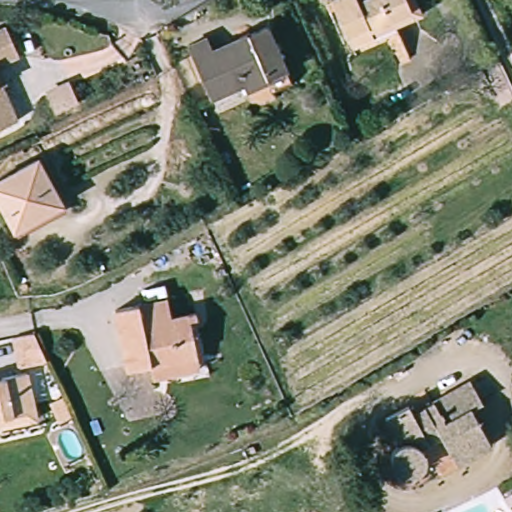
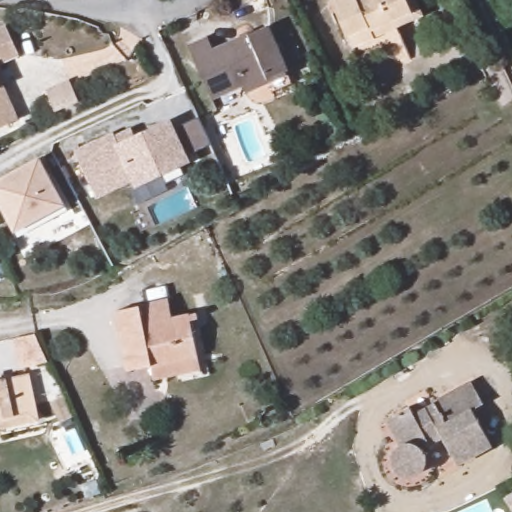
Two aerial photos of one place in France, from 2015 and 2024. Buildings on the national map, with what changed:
unchanged [(359,53),(339,7),(356,0),(362,0),(365,7),(381,0),(412,0),(423,25),(359,53)]
unchanged [(290,79),(249,96),(246,90),(216,104),(192,51),(210,44),(215,56),(269,32),(290,79)]
unchanged [(15,61),(0,68),(0,35),(3,34),(15,61)]
unchanged [(73,80),(84,103),(61,114),(50,91),(73,80)]
unchanged [(0,132),(0,94),(14,125),(0,132)]
new [(189,162),(133,185),(132,181),(96,199),(75,149),(110,134),(116,145),(167,120),(189,162)]
unchanged [(17,236),(0,203),(0,186),(41,165),(65,211),(17,236)]
unchanged [(152,386),(148,372),(125,377),(112,317),(165,306),(168,324),(184,320),(193,363),(197,376),(152,386)]
unchanged [(42,367),(19,377),(5,346),(30,341),(42,367)]
unchanged [(0,386),(24,381),(32,417),(34,428),(0,436),(0,386)]
unchanged [(478,410),(467,415),(487,451),(452,470),(438,443),(417,455),(420,457),(422,461),(423,466),(423,471),(422,475),(420,477),(417,480),(415,482),(410,484),(405,485),(400,484),(395,482),(392,477),(389,472),(387,465),(388,460),(392,456),(393,455),(396,453),(382,426),(408,414),(411,421),(432,410),(430,408),(467,389),(478,410)]

